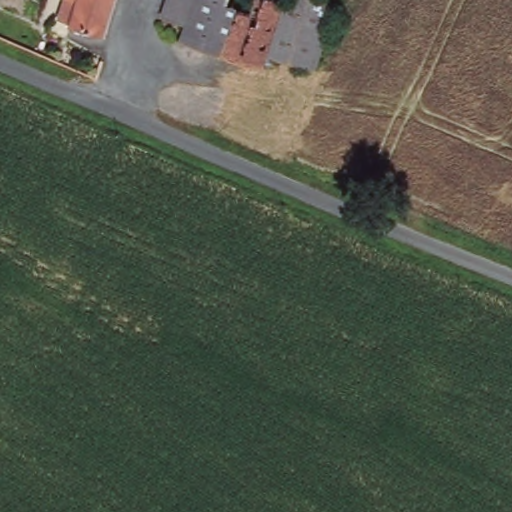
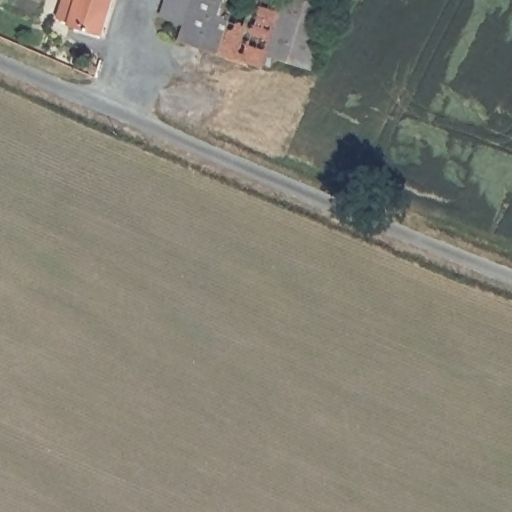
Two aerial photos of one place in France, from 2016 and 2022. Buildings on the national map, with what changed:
unchanged [(104,40),(69,30),(70,30),(74,14),(76,4),(65,1),(66,0),(115,0),(104,40)]
unchanged [(350,20),(335,66),(272,44),(262,67),(179,36),(177,36),(181,22),(161,14),(166,0),(299,0),(350,20)]

